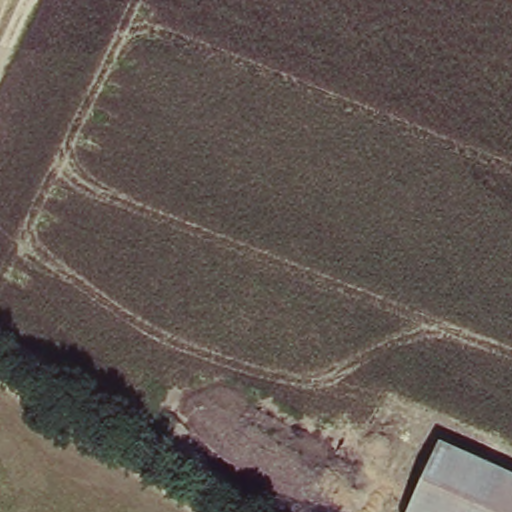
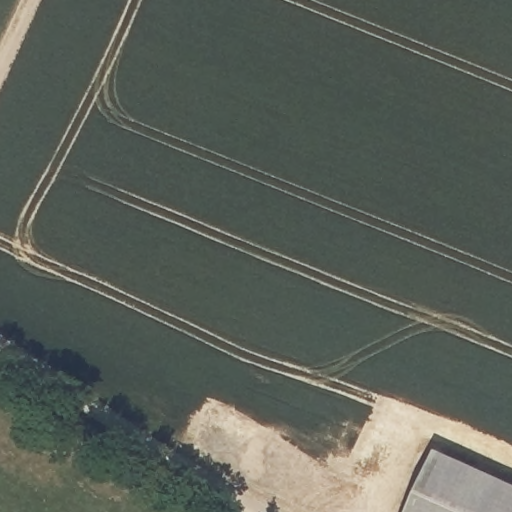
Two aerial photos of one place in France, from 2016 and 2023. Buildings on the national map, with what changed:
unchanged [(438,451),(512,484),(512,512),(409,512),(438,451)]

